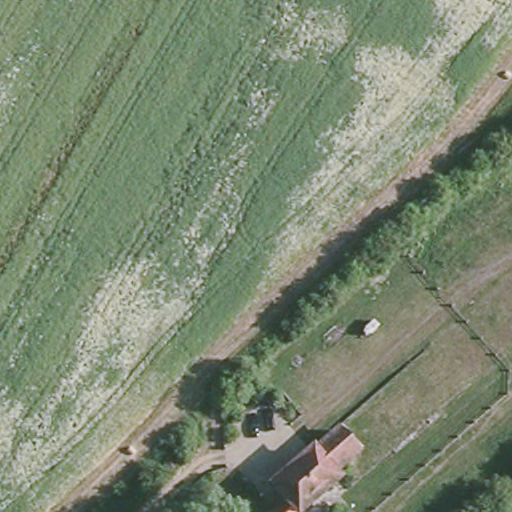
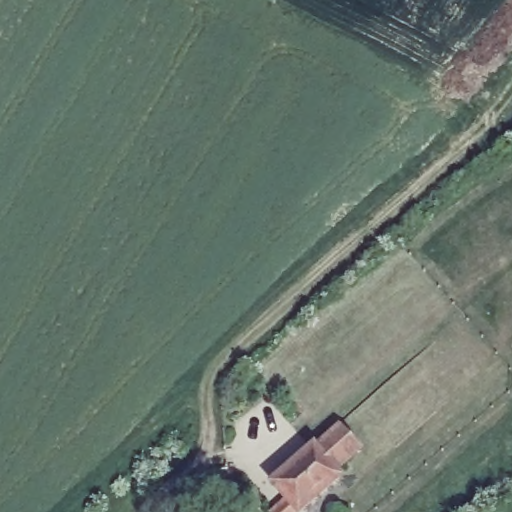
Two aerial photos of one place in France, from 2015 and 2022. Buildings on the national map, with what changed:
unchanged [(323,435),(348,462),(294,511),(282,498),(297,485),(284,470),(323,435)]

